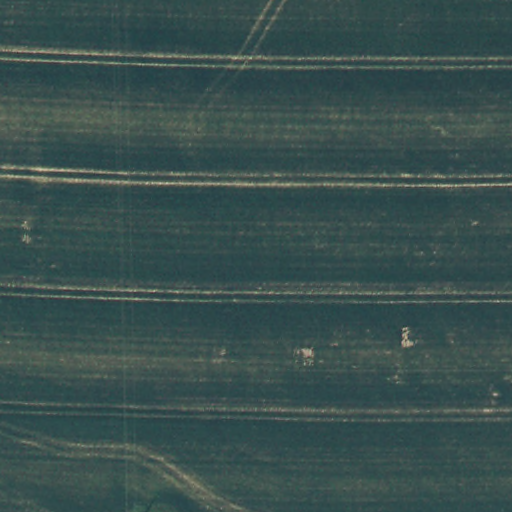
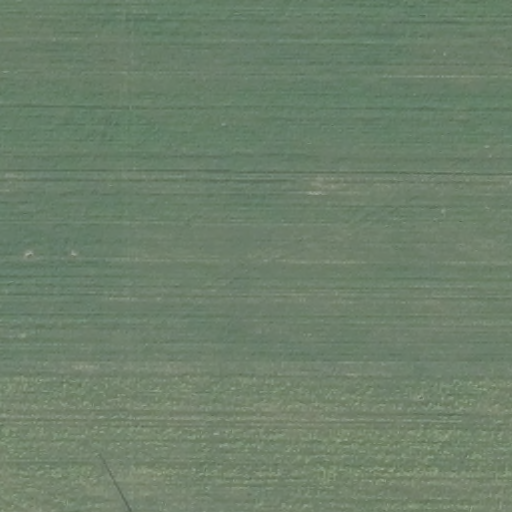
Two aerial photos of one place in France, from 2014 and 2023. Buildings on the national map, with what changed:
[]

